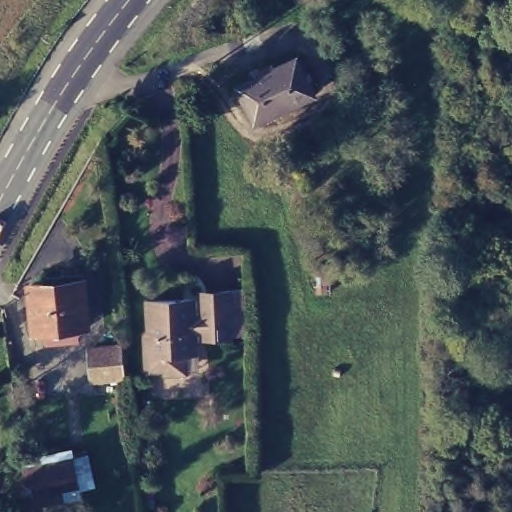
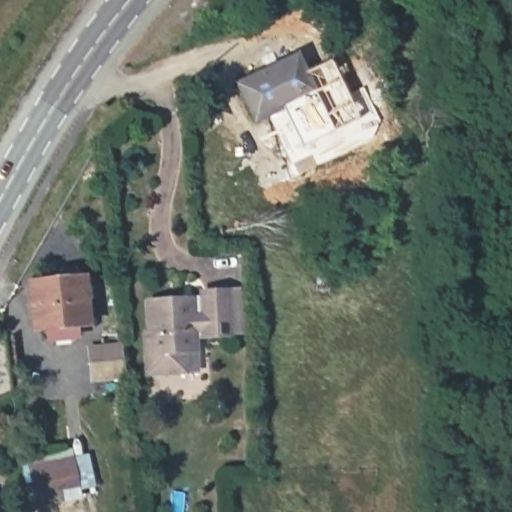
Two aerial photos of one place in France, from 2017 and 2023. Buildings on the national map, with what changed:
unchanged [(239,88),(298,55),(313,87),(254,119),(239,88)]
unchanged [(35,323),(32,324),(29,283),(42,280),(56,278),(79,275),(82,315),(60,319),(60,328),(36,331),(35,323)]
unchanged [(209,337),(209,335),(198,336),(198,352),(185,353),(185,372),(148,376),(149,339),(152,339),(153,308),(197,303),(197,309),(208,308),(208,295),(225,293),(233,292),(233,334),(225,335),(209,337)]
unchanged [(90,387),(88,358),(97,356),(97,347),(118,343),(121,382),(90,387)]
unchanged [(78,439),(85,493),(30,506),(22,446),(78,439)]

